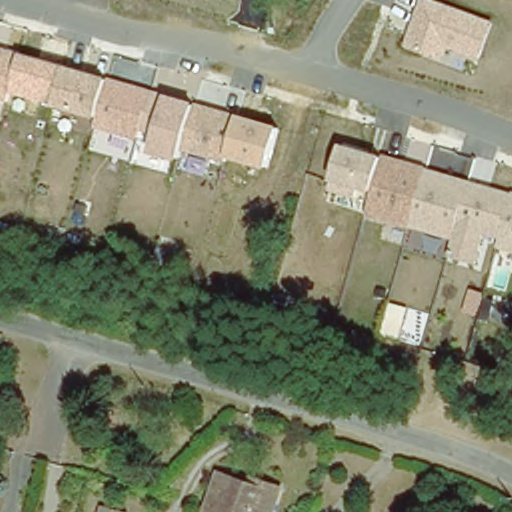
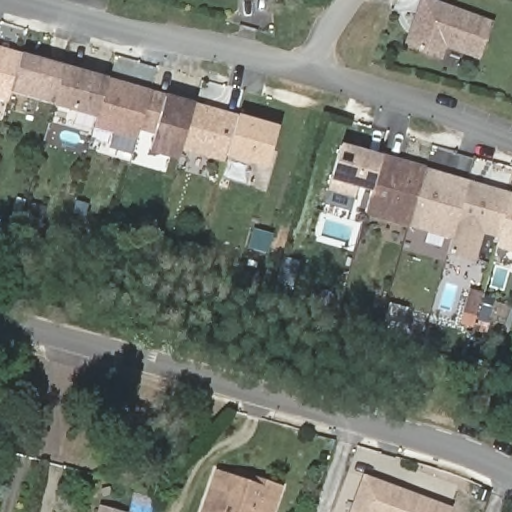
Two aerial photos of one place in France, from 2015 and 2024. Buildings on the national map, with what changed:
unchanged [(481,57),(445,45),(441,59),(407,46),(424,0),(492,24),(481,57)]
unchanged [(64,64),(53,105),(0,90),(0,47),(64,64)]
unchanged [(237,117),(225,161),(182,150),(179,160),(151,152),(156,132),(142,128),(139,137),(94,126),(97,116),(57,105),(66,69),(237,117)]
unchanged [(237,117),(278,127),(267,169),(226,157),(237,117)]
unchanged [(385,153),(428,165),(427,170),(512,195),(512,253),(496,248),(499,239),(483,234),(475,265),(446,256),(451,239),(364,219),(371,190),(358,186),(356,196),(329,189),(341,146),(384,159),(385,153)]
new [(390,305),(406,310),(401,326),(398,340),(382,335),(386,322),(390,305)]
unchanged [(211,473),(240,481),(273,491),(270,503),(268,512),(201,512),(211,473)]
new [(451,512),(349,512),(363,474),(452,507),(451,512)]
unchanged [(126,512),(101,512),(103,501),(127,506),(126,512)]

